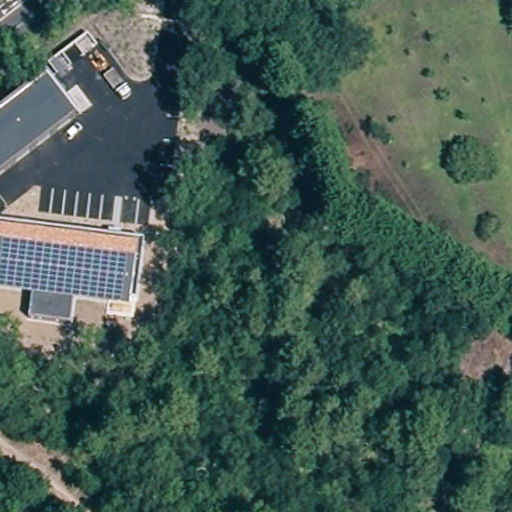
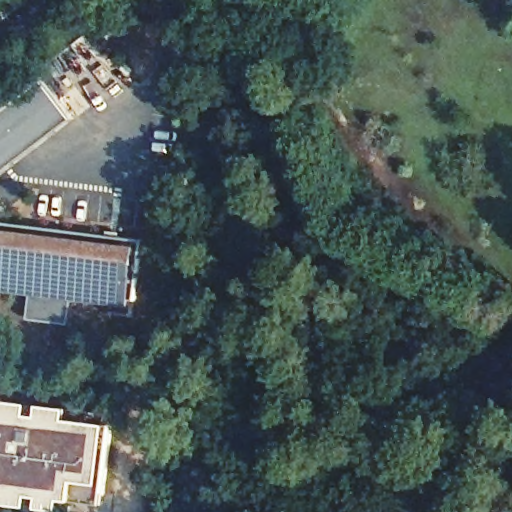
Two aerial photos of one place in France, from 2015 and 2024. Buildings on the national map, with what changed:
unchanged [(76,116),(0,174),(0,110),(47,74),(76,116)]
unchanged [(143,242),(136,300),(130,299),(127,307),(73,301),(71,322),(29,317),(31,294),(0,290),(0,222),(143,242)]
new [(7,400),(71,408),(69,419),(109,424),(102,483),(104,503),(75,500),(64,498),(64,511),(0,503),(0,391),(7,400)]

